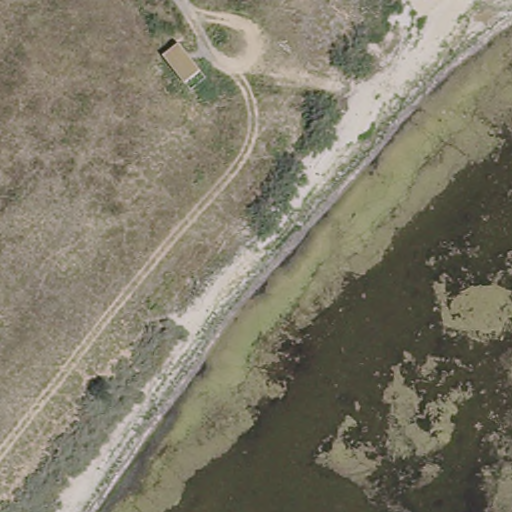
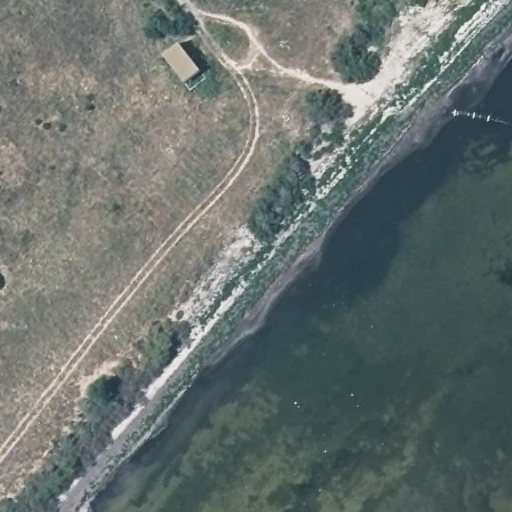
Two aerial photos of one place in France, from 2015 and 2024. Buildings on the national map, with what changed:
unchanged [(180,47),(199,72),(184,83),(164,59),(180,47)]

